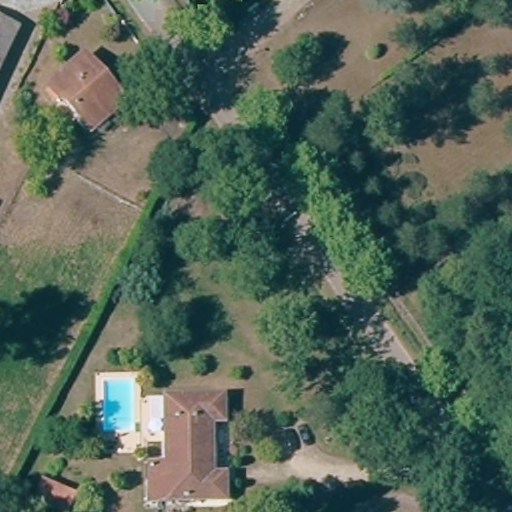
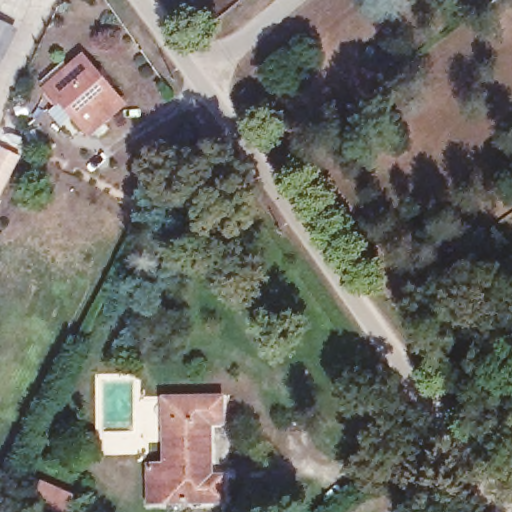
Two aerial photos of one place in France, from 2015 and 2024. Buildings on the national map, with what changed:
unchanged [(15,31),(0,63),(0,23),(15,31)]
unchanged [(126,102),(93,129),(65,99),(61,101),(50,87),(87,56),(126,102)]
new [(21,157),(0,199),(0,147),(21,157)]
unchanged [(223,401),(222,425),(209,425),(210,476),(223,477),(224,501),(149,502),(149,469),(165,469),(162,402),(223,401)]
unchanged [(66,496),(58,512),(49,512),(34,504),(44,485),(66,496)]

